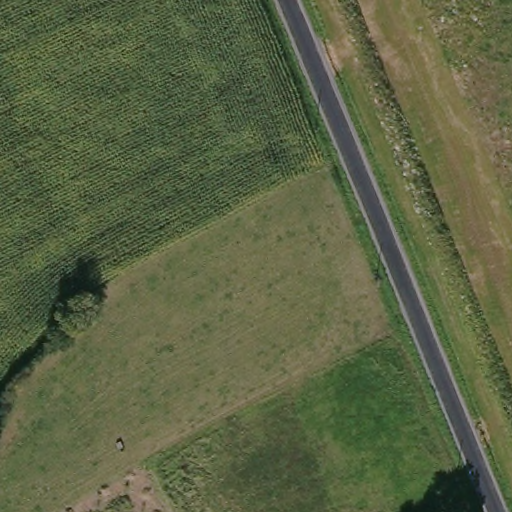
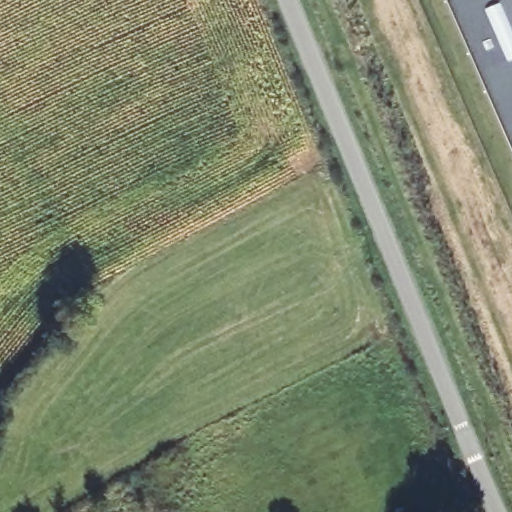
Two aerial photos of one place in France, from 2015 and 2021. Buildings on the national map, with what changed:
new [(447,0),(512,0),(512,150),(447,0)]

